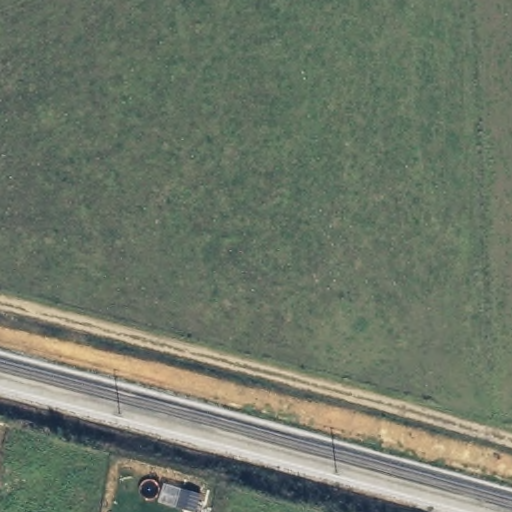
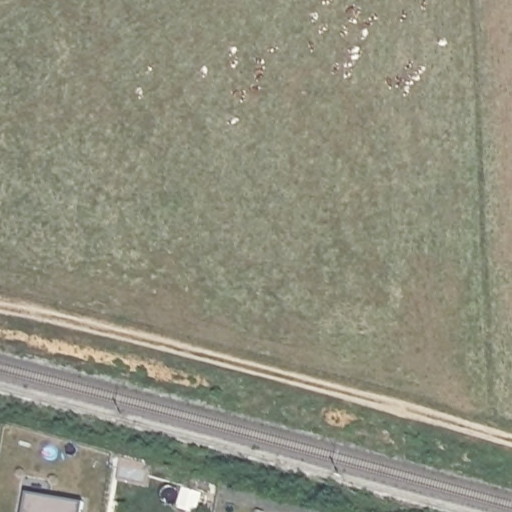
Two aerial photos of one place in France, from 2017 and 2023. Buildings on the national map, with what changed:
new [(30,490),(82,498),(80,512),(26,512),(30,490)]

